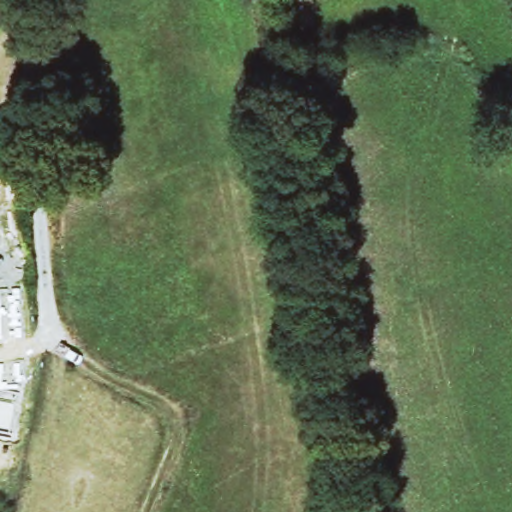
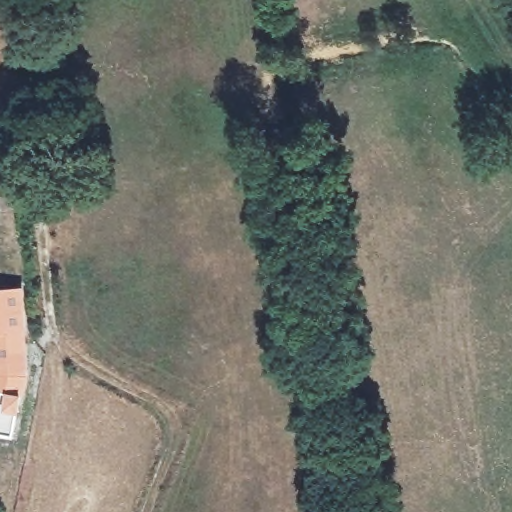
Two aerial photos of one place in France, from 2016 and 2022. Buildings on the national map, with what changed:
new [(25,286),(28,375),(26,393),(22,393),(20,410),(15,433),(0,430),(0,287),(25,286)]

